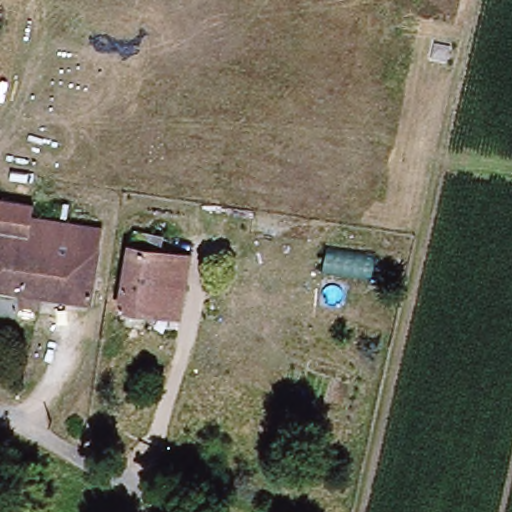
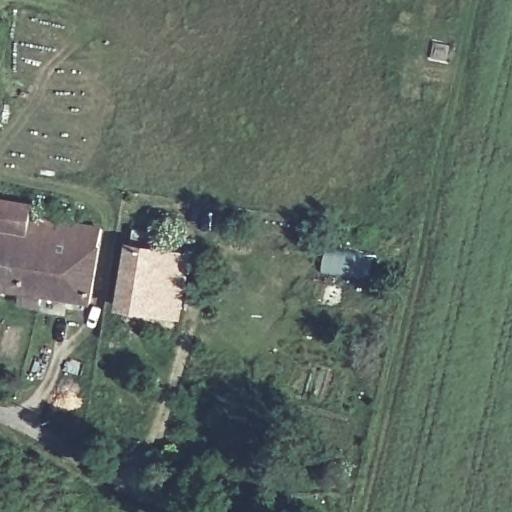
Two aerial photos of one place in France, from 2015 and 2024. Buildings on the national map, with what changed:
unchanged [(102,229),(89,303),(40,295),(39,305),(20,302),(22,292),(0,289),(0,200),(33,205),(31,218),(102,229)]
unchanged [(154,293),(161,295),(171,297),(168,316),(118,307),(129,246),(132,246),(134,230),(162,235),(159,252),(161,252),(154,293)]
unchanged [(188,257),(177,318),(168,316),(171,297),(161,295),(154,293),(161,252),(188,257)]

